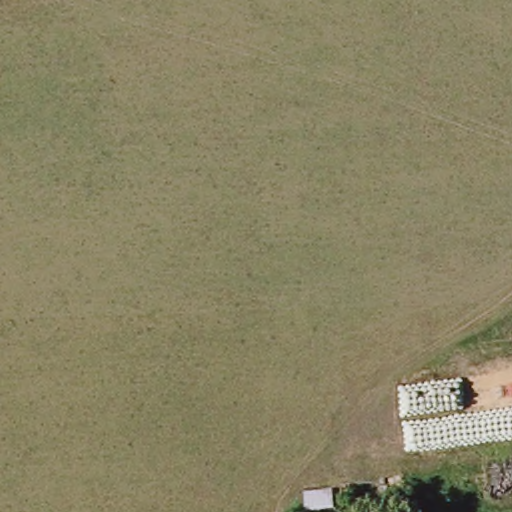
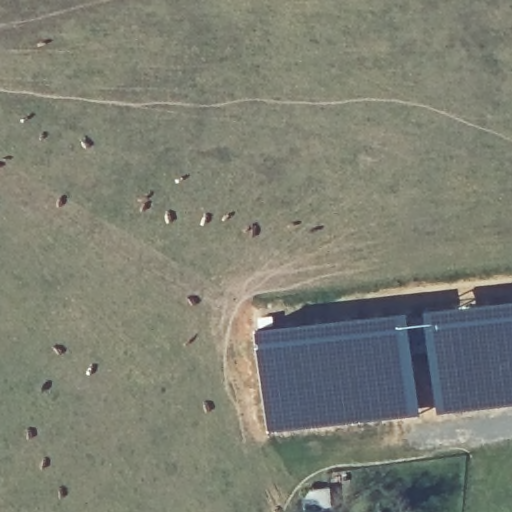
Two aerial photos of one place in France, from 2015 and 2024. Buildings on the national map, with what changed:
new [(512,298),(512,405),(437,413),(426,307),(512,298)]
new [(410,310),(421,414),(269,431),(258,325),(410,310)]
new [(330,486),(333,509),(313,512),(305,512),(303,489),(330,486)]

